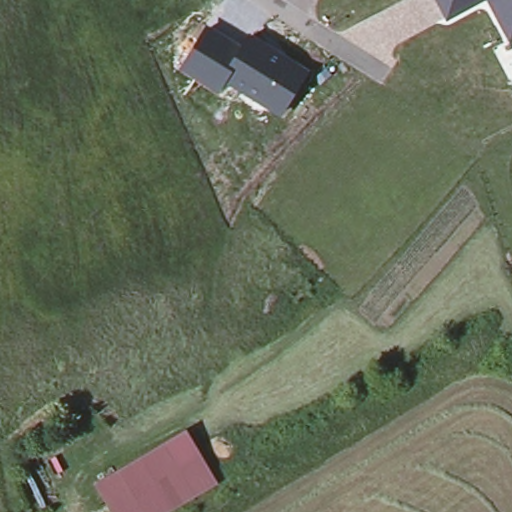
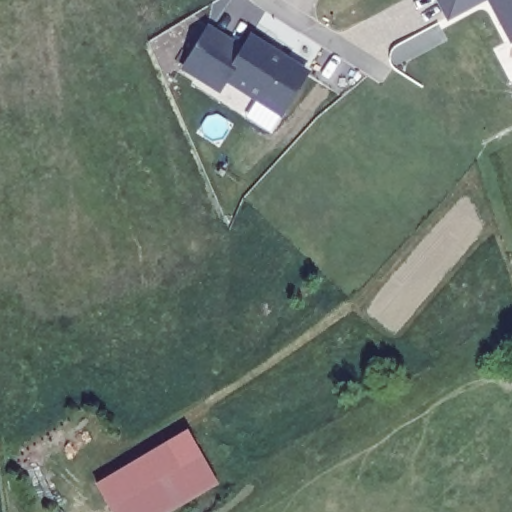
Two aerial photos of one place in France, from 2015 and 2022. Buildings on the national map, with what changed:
unchanged [(446,14),(438,0),(470,0),(446,14)]
unchanged [(490,0),(512,0),(512,34),(509,35),(498,15),(490,0)]
unchanged [(206,26),(242,45),(249,34),(311,70),(281,118),(226,82),(219,94),(181,69),(206,26)]
unchanged [(171,512),(113,512),(95,482),(188,427),(221,482),(171,512)]

